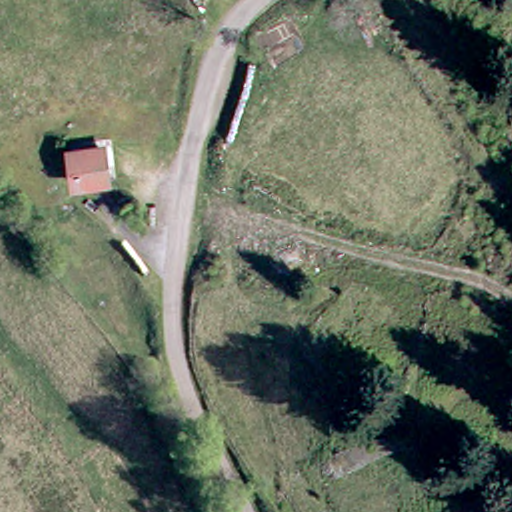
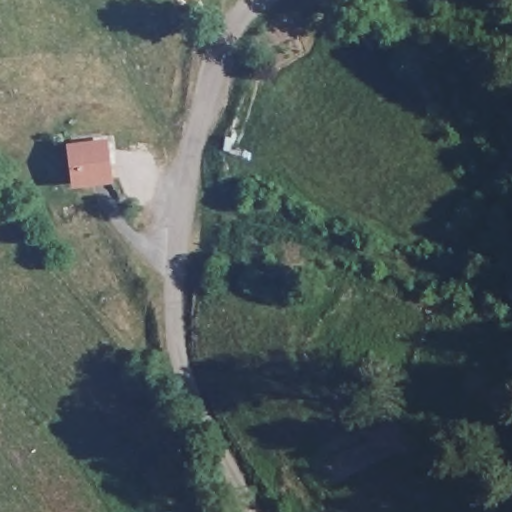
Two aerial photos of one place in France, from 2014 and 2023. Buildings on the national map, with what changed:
unchanged [(70,155),(105,151),(107,189),(74,192),(70,155)]

